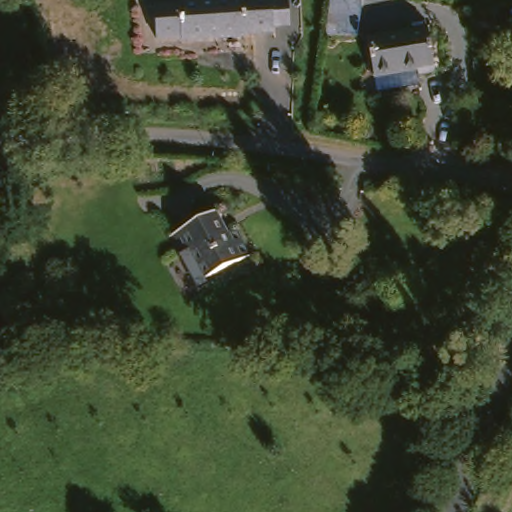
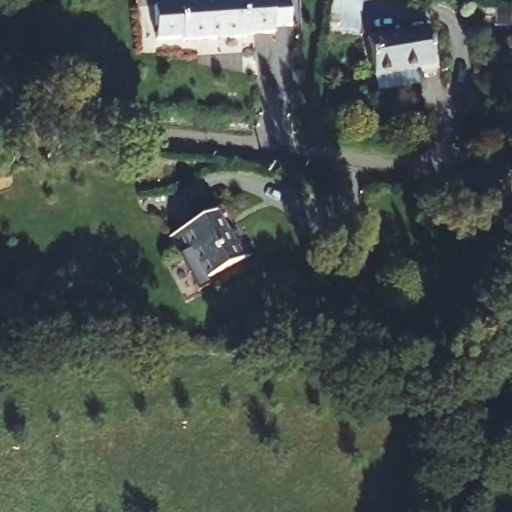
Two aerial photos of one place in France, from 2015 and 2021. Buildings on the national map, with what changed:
unchanged [(256,33),(191,36),(191,35),(166,36),(164,1),(183,0),(298,0),(299,20),(283,21),(284,28),(256,30),(256,33)]
unchanged [(436,29),(444,73),(429,76),(427,73),(383,78),(377,39),(436,29)]
unchanged [(247,223),(261,251),(216,277),(197,247),(188,253),(178,235),(224,209),(236,230),(247,223)]

